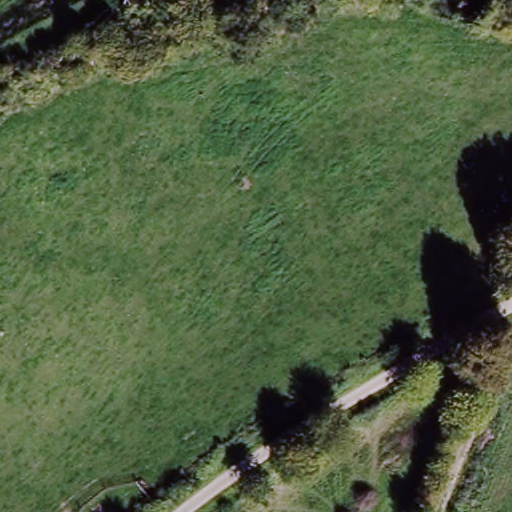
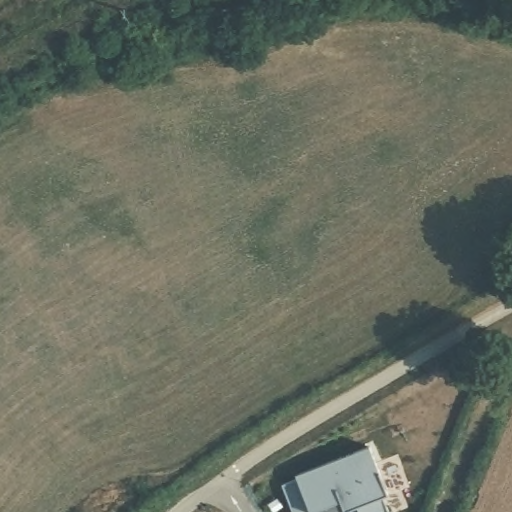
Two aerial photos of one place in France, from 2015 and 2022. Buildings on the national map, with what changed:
new [(388,493),(381,496),(389,511),(385,512),(358,512),(354,505),(344,509),(341,501),(311,512),(308,512),(308,511),(305,512),(293,512),(283,484),(295,478),(294,475),(369,446),(388,493)]

